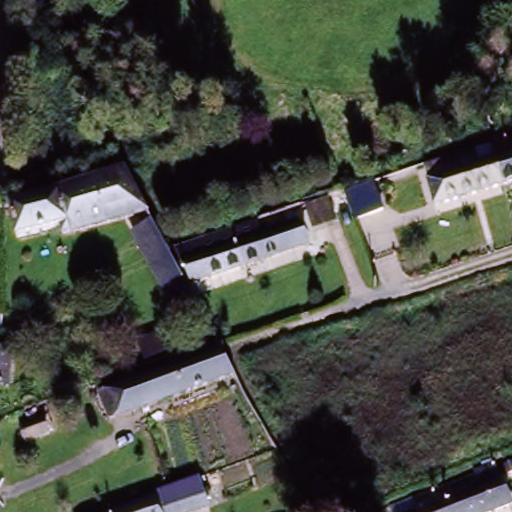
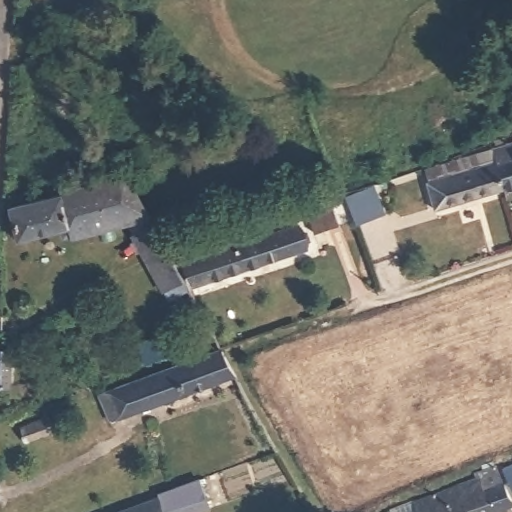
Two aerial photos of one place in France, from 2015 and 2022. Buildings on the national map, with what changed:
unchanged [(506,190),(498,163),(493,148),(512,144),(512,189),(506,190)]
unchanged [(429,184),(424,170),(428,168),(493,145),(493,148),(498,163),(429,184)]
unchanged [(437,211),(429,184),(498,163),(506,190),(437,211)]
unchanged [(19,240),(11,208),(62,195),(74,191),(127,174),(140,202),(148,216),(64,238),(63,230),(19,240)]
unchanged [(373,187),(382,212),(354,222),(346,197),(373,187)]
unchanged [(330,203),(339,227),(315,235),(307,211),(330,203)]
unchanged [(184,280),(165,291),(137,237),(155,227),(171,255),(184,280)]
unchanged [(302,227),(308,250),(196,286),(184,264),(222,252),(218,240),(258,227),(262,239),(302,227)]
unchanged [(166,342),(169,350),(150,357),(148,350),(166,342)]
unchanged [(113,421),(103,394),(222,350),(235,377),(113,421)]
unchanged [(0,352),(9,352),(7,387),(0,387),(0,352)]
unchanged [(26,442),(21,427),(43,420),(49,435),(26,442)]
unchanged [(498,466),(503,480),(512,504),(512,506),(496,512),(462,512),(452,487),(479,476),(478,474),(498,466)]
unchanged [(178,489),(199,481),(209,509),(202,512),(120,512),(179,491),(178,489)]
unchanged [(394,512),(393,510),(417,501),(452,487),(462,512),(394,512)]

